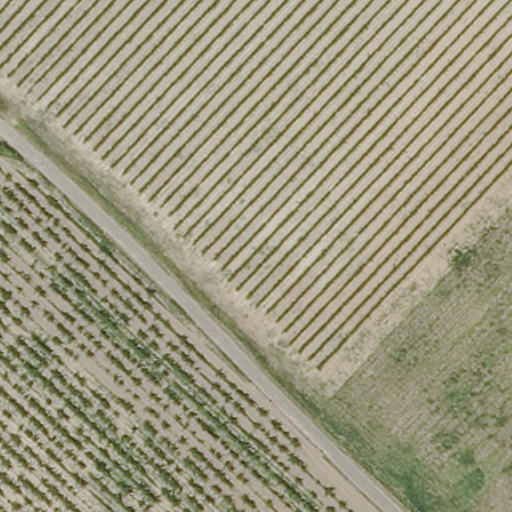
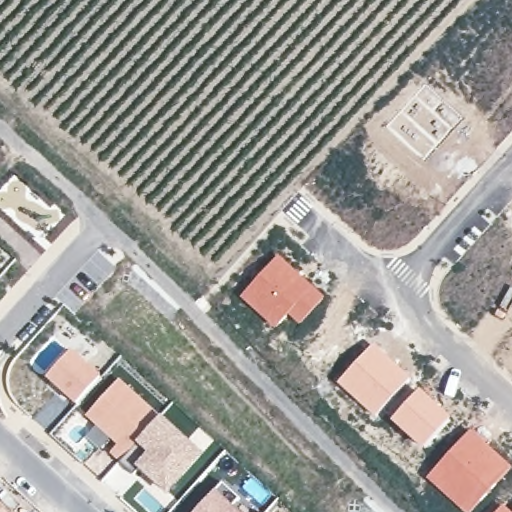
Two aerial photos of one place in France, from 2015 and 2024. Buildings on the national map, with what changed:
new [(465,120),(426,163),(389,129),(427,88),(465,120)]
new [(277,254),(325,297),(298,325),(288,315),(275,328),(240,296),(277,254)]
new [(373,343),(410,377),(374,417),(338,383),(373,343)]
new [(72,350),(101,377),(75,405),(47,377),(72,350)]
new [(120,380),(204,455),(167,495),(136,466),(146,455),(137,445),(118,461),(110,452),(115,446),(85,415),(120,380)]
new [(420,390),(452,418),(422,450),(392,421),(420,390)]
new [(512,466),(469,512),(463,512),(426,478),(471,427),(512,466)]
new [(241,512),(197,512),(218,490),(241,512)]
new [(0,512),(0,503),(10,512),(0,512)]
new [(512,512),(495,512),(503,504),(512,512)]

